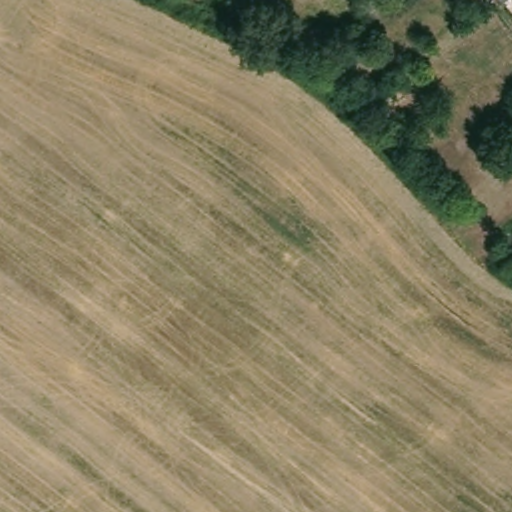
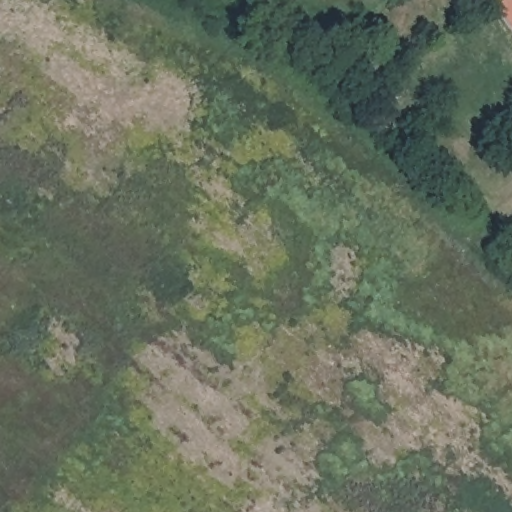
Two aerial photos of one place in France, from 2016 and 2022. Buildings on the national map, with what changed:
unchanged [(481,10),(474,0),(495,0),(481,10)]
unchanged [(503,4),(501,0),(508,0),(503,4)]

